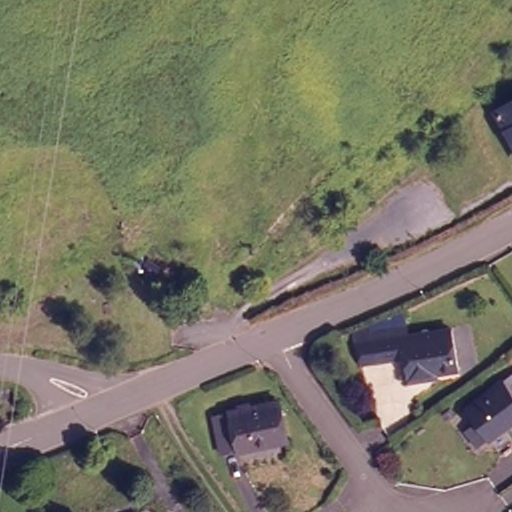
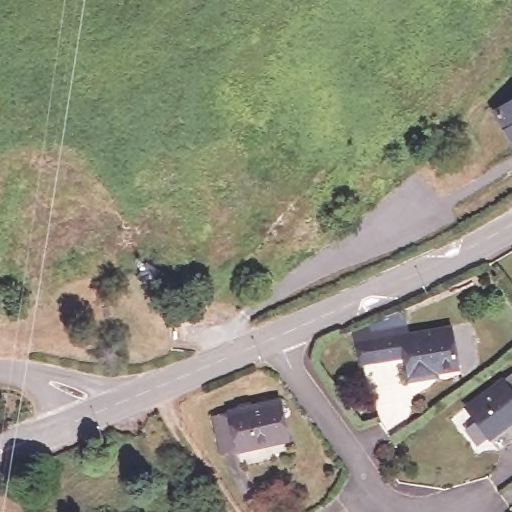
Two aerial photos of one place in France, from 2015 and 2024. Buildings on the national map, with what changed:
unchanged [(493,114),(512,102),(512,147),(493,114)]
unchanged [(476,332),(478,368),(453,370),(453,379),(428,381),(424,363),(389,367),(373,369),(365,336),(383,328),(418,315),(420,330),(420,338),(476,332)]
unchanged [(463,436),(474,426),(462,411),(512,373),(512,426),(487,445),(474,450),(463,436)]
unchanged [(285,445),(215,457),(210,424),(281,410),(285,445)]

